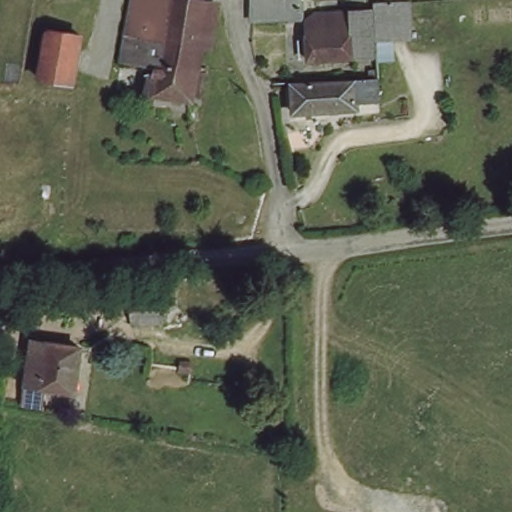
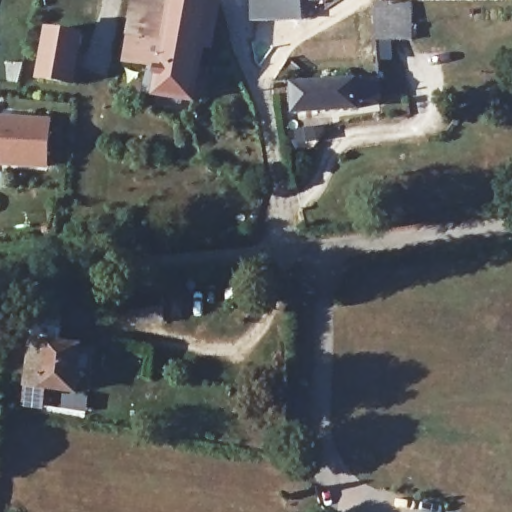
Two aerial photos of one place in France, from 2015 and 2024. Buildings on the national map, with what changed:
unchanged [(197,102),(150,91),(155,63),(127,57),(137,0),(216,0),(219,4),(197,102)]
unchanged [(254,0),(300,0),(302,18),(255,22),(254,0)]
unchanged [(382,41),(377,3),(408,0),(417,0),(420,38),(382,41)]
unchanged [(374,13),(378,57),(312,61),(308,17),(374,13)]
unchanged [(77,82),(45,75),(53,27),(85,33),(77,82)]
unchanged [(357,109),(294,114),(290,86),(379,79),(380,102),(358,103),(357,109)]
new [(49,168),(0,166),(0,116),(52,118),(49,168)]
unchanged [(172,312),(140,316),(137,286),(165,282),(172,312)]
unchanged [(45,381),(42,401),(25,397),(35,333),(84,341),(76,386),(45,381)]

